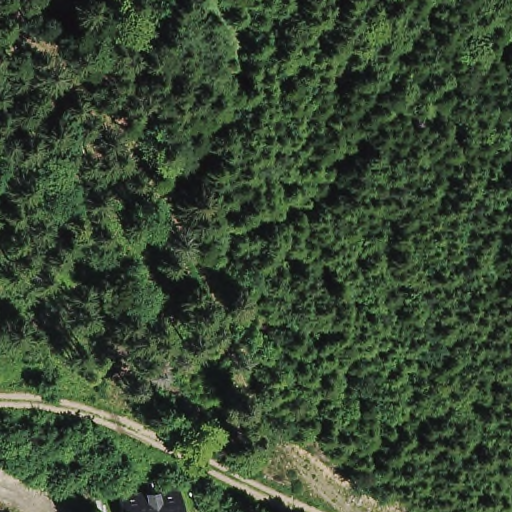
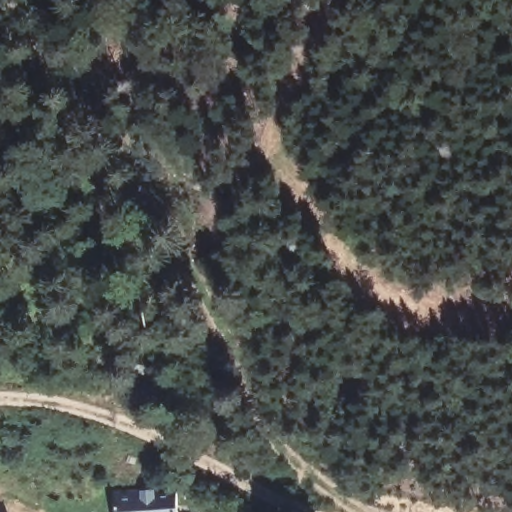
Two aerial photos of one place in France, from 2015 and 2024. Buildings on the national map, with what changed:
unchanged [(115,496),(174,492),(176,512),(117,512),(115,496)]

